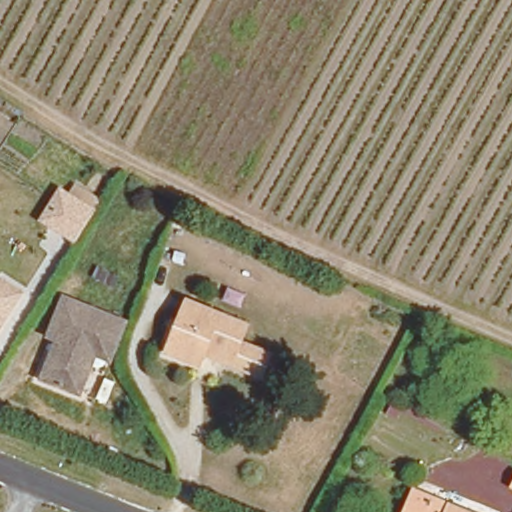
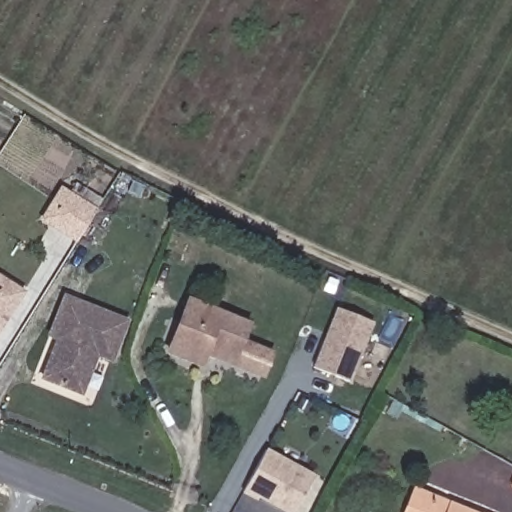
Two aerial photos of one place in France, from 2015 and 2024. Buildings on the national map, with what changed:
unchanged [(51,222),(44,218),(53,204),(62,188),(96,210),(77,239),(51,222)]
unchanged [(21,291),(0,325),(0,276),(4,279),(21,291)]
unchanged [(110,361),(94,355),(80,393),(42,377),(56,337),(51,334),(64,298),(124,323),(110,361)]
unchanged [(258,375),(202,353),(196,365),(163,350),(183,300),(242,323),(234,342),(265,355),(258,375)]
new [(354,380),(314,365),(335,309),(376,325),(354,380)]
new [(293,512),(289,512),(258,495),(257,497),(243,490),(265,449),(313,475),(293,512)]
unchanged [(469,512),(406,512),(416,488),(469,512)]

